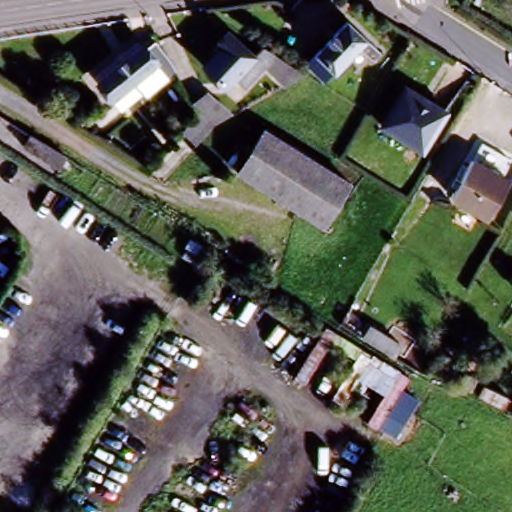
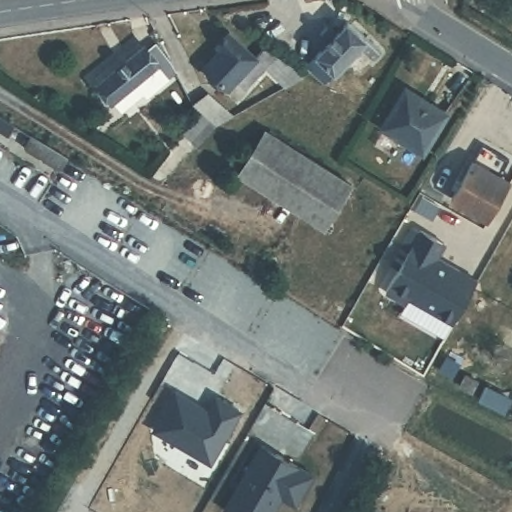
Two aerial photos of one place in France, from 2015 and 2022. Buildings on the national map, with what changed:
unchanged [(290,60),(278,72),(263,60),(243,82),(234,75),(225,85),(201,64),(219,43),(215,39),(225,26),(255,53),(263,45),(290,60)]
unchanged [(318,86),(300,69),(340,27),(372,58),(364,67),(350,54),(318,86)]
unchanged [(131,52),(136,59),(148,50),(165,75),(155,82),(135,99),(115,116),(110,110),(91,86),(131,52)]
unchanged [(447,112),(420,153),(377,125),(403,85),(447,112)]
unchanged [(191,96),(205,87),(226,108),(212,116),(191,96)]
unchanged [(214,120),(194,141),(187,136),(181,130),(199,107),(214,120)]
unchanged [(320,226),(234,172),(261,129),(325,169),(303,205),(325,219),(320,226)]
unchanged [(37,130),(73,154),(66,165),(30,141),(37,130)]
unchanged [(485,220),(448,200),(470,162),(505,184),(485,220)]
unchanged [(325,169),(347,184),(325,219),(303,205),(325,169)]
new [(446,244),(438,258),(479,280),(452,324),(409,298),(405,303),(385,291),(419,229),(446,244)]
demolished [(364,323),(394,343),(388,353),(358,333),(364,323)]
unchanged [(466,387),(453,381),(460,370),(472,375),(466,387)]
new [(155,430),(175,393),(209,412),(216,398),(240,411),(210,462),(155,430)]
new [(282,497),(274,512),(227,512),(224,510),(235,491),(237,492),(242,484),(240,483),(261,445),(313,475),(295,505),(282,497)]

